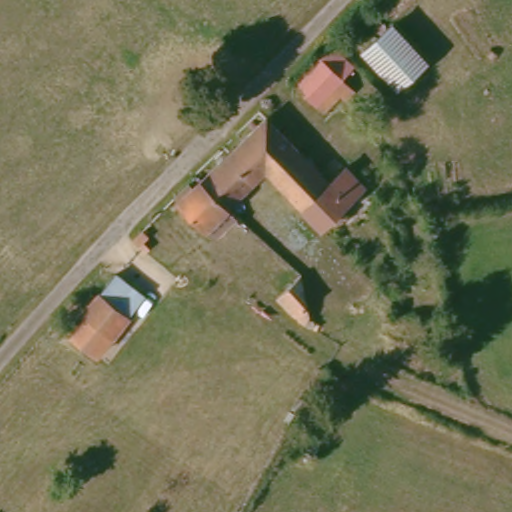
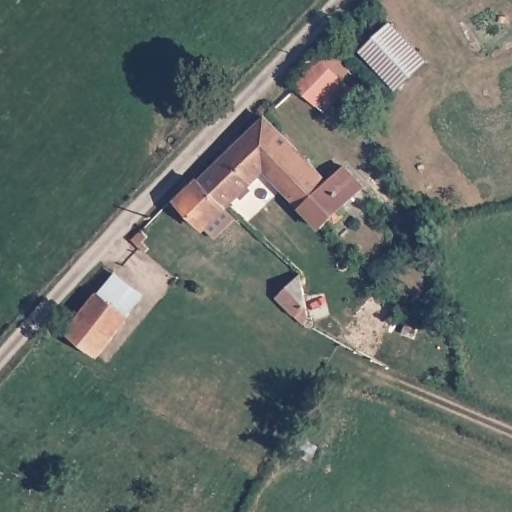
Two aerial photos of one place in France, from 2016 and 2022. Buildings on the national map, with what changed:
unchanged [(423,57),(395,89),(358,54),(385,25),(423,57)]
unchanged [(344,61),(333,75),(347,88),(338,99),(332,94),(315,110),(283,80),(322,40),(344,61)]
unchanged [(292,143),(263,172),(227,207),(198,176),(263,115),(292,143)]
unchanged [(292,143),(327,177),(345,160),(365,179),(342,201),(347,205),(336,216),(331,212),(315,228),(263,172),(292,143)]
unchanged [(227,207),(232,211),(237,217),(215,240),(204,230),(173,200),(167,195),(175,187),(187,176),(193,181),(198,176),(227,207)]
unchanged [(163,221),(151,234),(145,226),(152,217),(157,215),(163,221)]
unchanged [(310,326),(278,297),(300,271),(310,326)]
unchanged [(63,331),(96,294),(114,275),(142,300),(125,319),(92,357),(63,331)]

